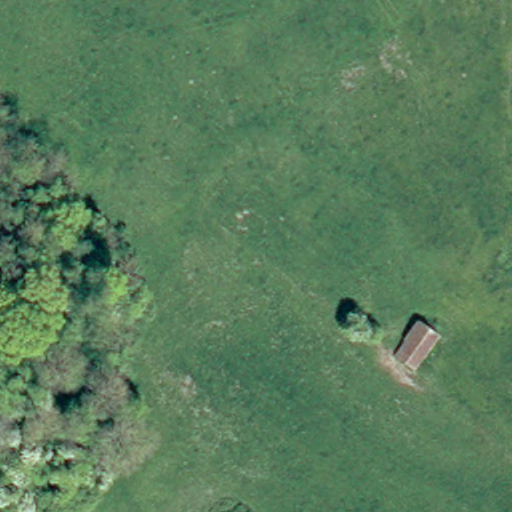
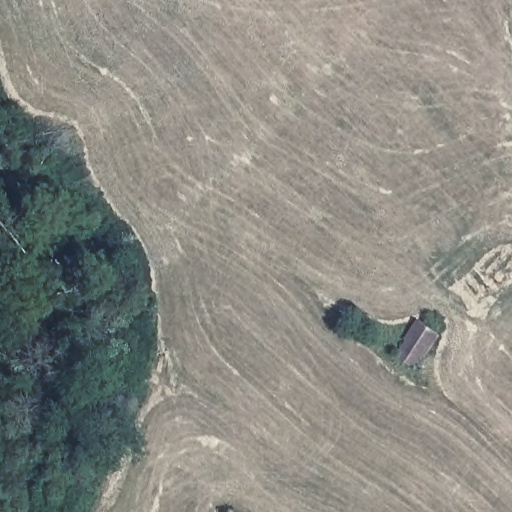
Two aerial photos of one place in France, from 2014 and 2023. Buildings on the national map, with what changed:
unchanged [(424,321),(443,335),(418,367),(400,353),(424,321)]

